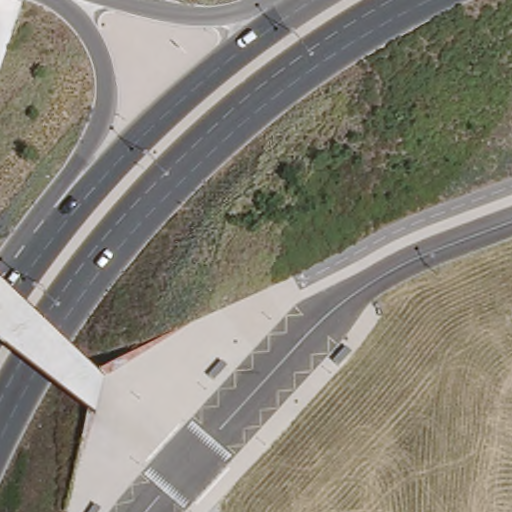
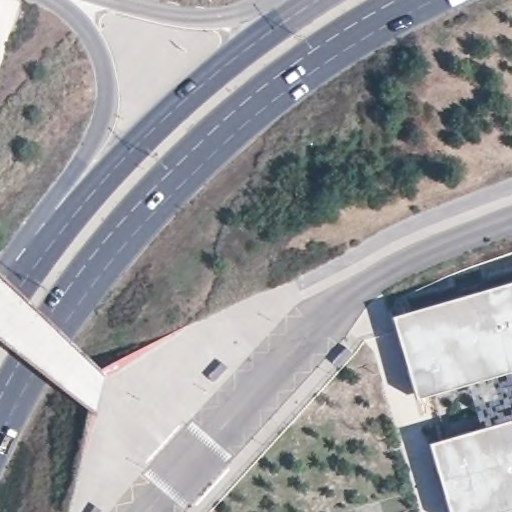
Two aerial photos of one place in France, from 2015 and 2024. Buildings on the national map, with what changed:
new [(416,398),(392,317),(512,282),(512,371),(416,398)]
new [(448,512),(429,443),(512,420),(512,508),(498,512),(448,512)]

